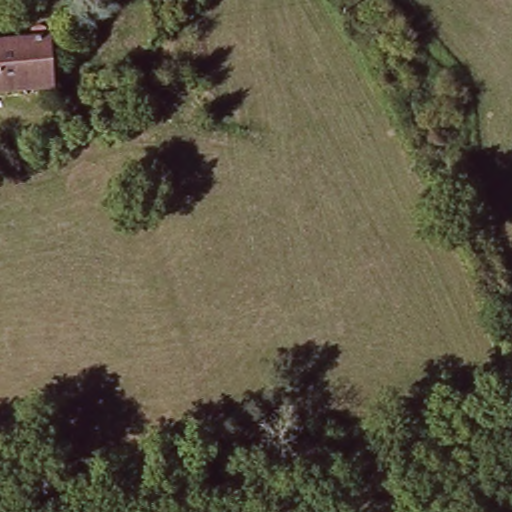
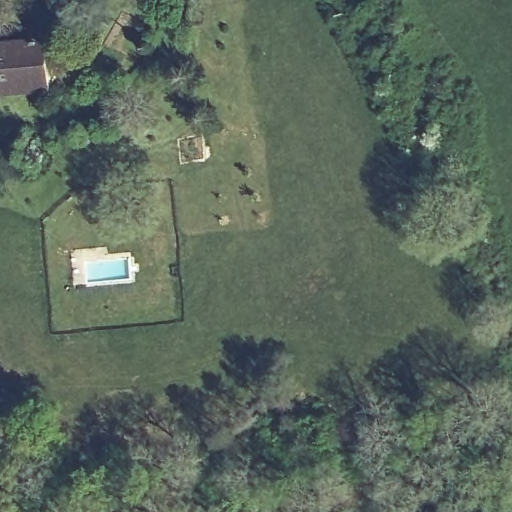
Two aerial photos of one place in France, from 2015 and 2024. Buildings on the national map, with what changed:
unchanged [(0,43),(59,42),(59,87),(0,91),(0,43)]

